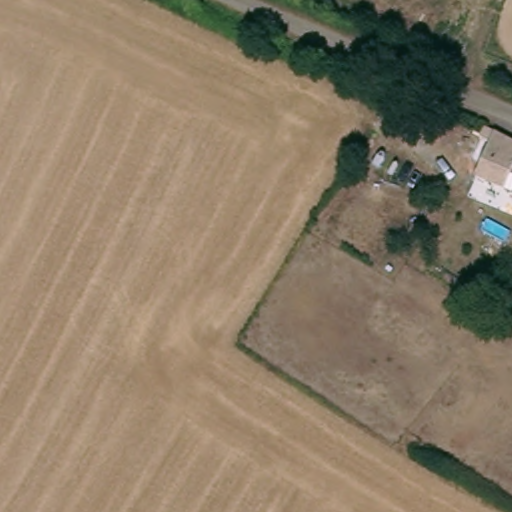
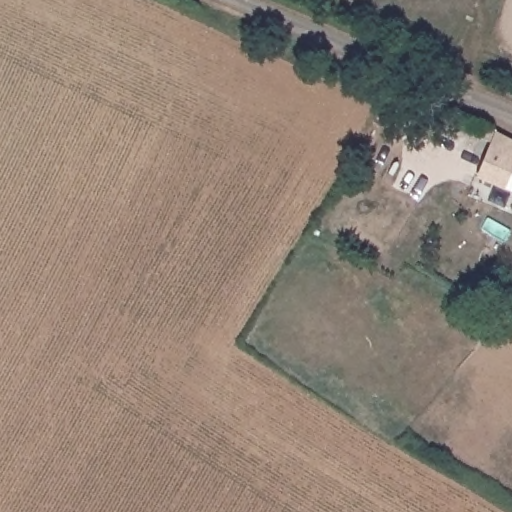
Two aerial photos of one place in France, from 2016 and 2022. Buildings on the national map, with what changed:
unchanged [(478,179),(493,146),(482,140),(488,130),(512,140),(512,195),(478,179)]

